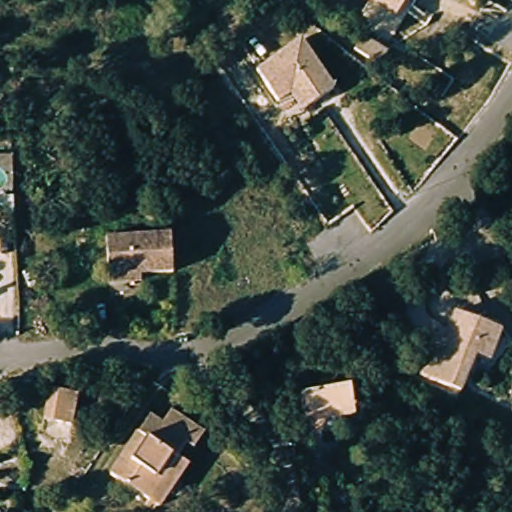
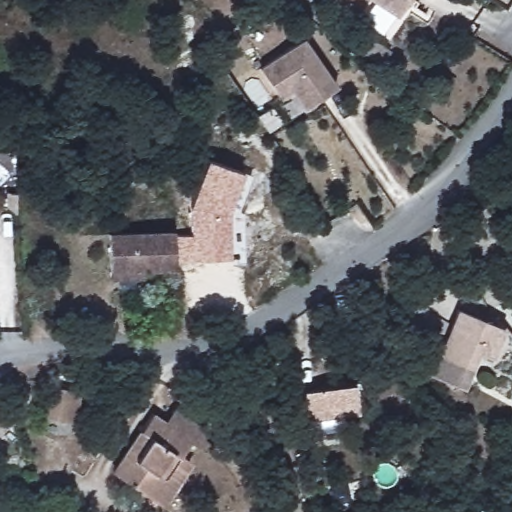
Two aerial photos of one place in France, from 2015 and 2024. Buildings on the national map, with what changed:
unchanged [(374,0),(405,0),(395,15),(374,0)]
unchanged [(299,37),(336,85),(309,107),(292,89),(280,101),(256,74),(299,37)]
new [(226,209),(230,257),(171,261),(171,232),(190,231),(188,206),(205,157),(240,170),(226,209)]
unchanged [(171,231),(171,280),(101,276),(103,223),(171,224),(171,231)]
unchanged [(469,348),(452,368),(428,347),(468,304),(489,323),(502,335),(483,359),(469,348)]
unchanged [(351,386),(353,411),(307,414),(304,391),(351,386)]
unchanged [(71,424),(44,418),(52,388),(79,395),(71,424)]
unchanged [(144,495),(107,463),(151,412),(166,425),(181,408),(209,431),(196,448),(187,445),(180,453),(191,463),(155,505),(144,495)]

